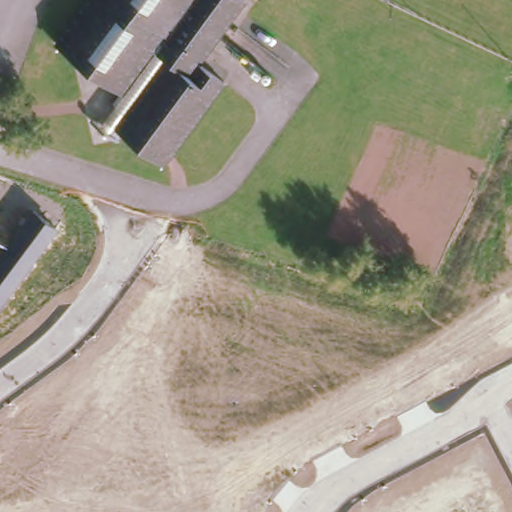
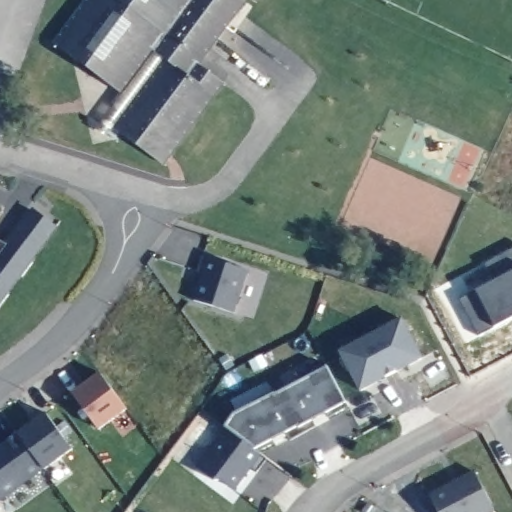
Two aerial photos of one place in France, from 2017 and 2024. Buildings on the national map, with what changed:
unchanged [(198,63),(224,81),(164,163),(120,133),(115,139),(109,134),(126,113),(112,102),(120,92),(55,43),(87,0),(244,0),(198,63)]
unchanged [(9,244),(34,209),(59,227),(0,305),(0,240),(9,244)]
new [(476,291),(495,281),(486,264),(512,250),(512,320),(481,336),(464,302),(476,291)]
new [(237,312),(195,299),(203,273),(199,271),(204,256),(249,270),(237,312)]
new [(403,320),(417,342),(423,358),(361,390),(341,352),(403,320)]
new [(227,427),(235,413),(256,403),(255,400),(275,390),(277,394),(309,376),(307,374),(327,364),(350,406),(330,416),(328,412),(314,419),(317,425),(291,439),(286,431),(273,439),(275,442),(260,451),(227,427)]
new [(103,373),(128,408),(100,429),(74,394),(103,373)]
new [(48,413),(74,448),(47,470),(45,468),(20,434),(48,413)]
new [(227,427),(260,451),(268,458),(258,471),(252,467),(236,488),(224,479),(216,480),(199,467),(227,427)]
new [(45,468),(0,501),(0,448),(20,434),(45,468)]
new [(469,469),(488,505),(475,512),(434,512),(424,492),(469,469)]

